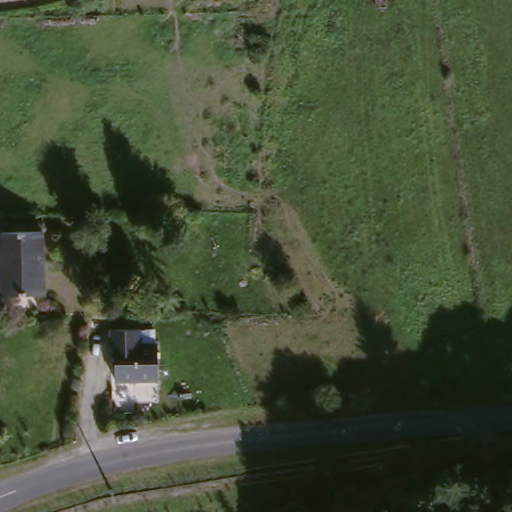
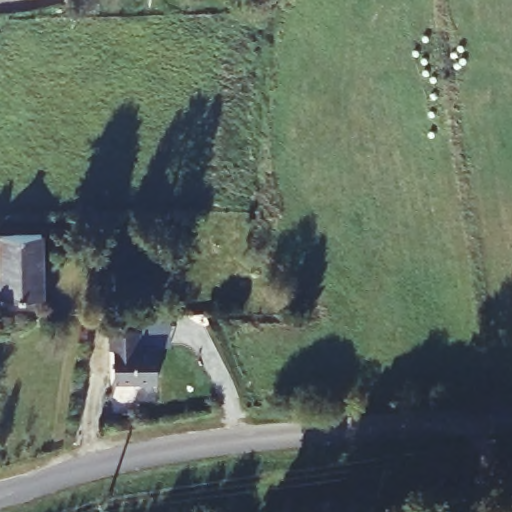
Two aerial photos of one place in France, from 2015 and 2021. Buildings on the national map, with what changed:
unchanged [(40,237),(41,295),(0,295),(0,236),(40,237)]
unchanged [(120,327),(149,327),(149,338),(158,338),(160,384),(120,377),(120,327)]

